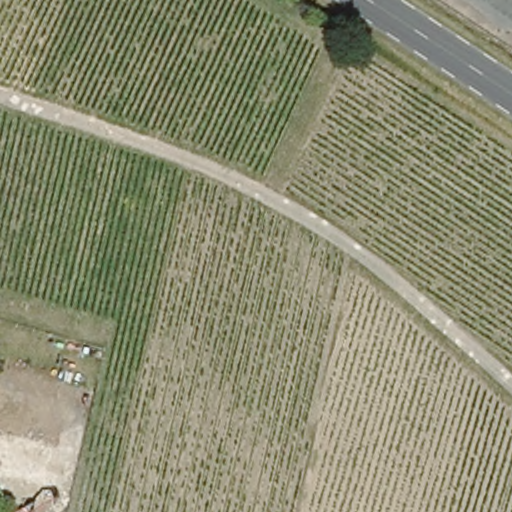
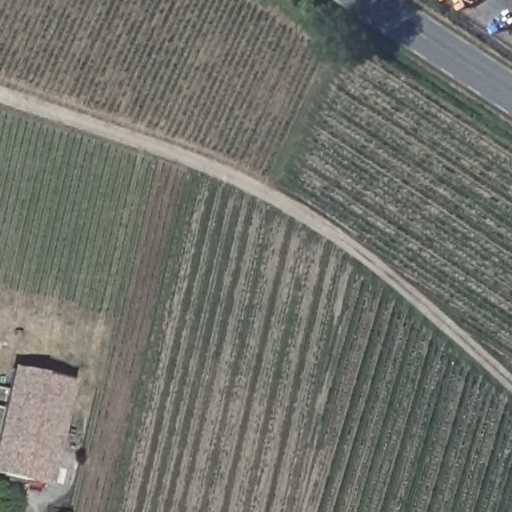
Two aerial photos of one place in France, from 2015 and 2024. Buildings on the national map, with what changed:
new [(49,488),(0,476),(0,416),(12,365),(73,380),(49,488)]
demolished [(36,435),(39,436),(30,475),(0,467),(0,401),(41,411),(36,435)]

